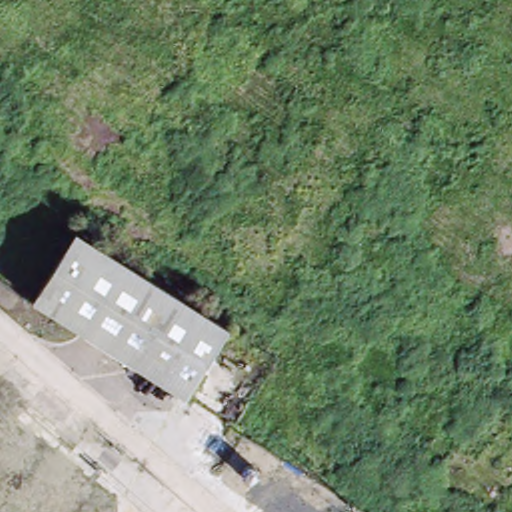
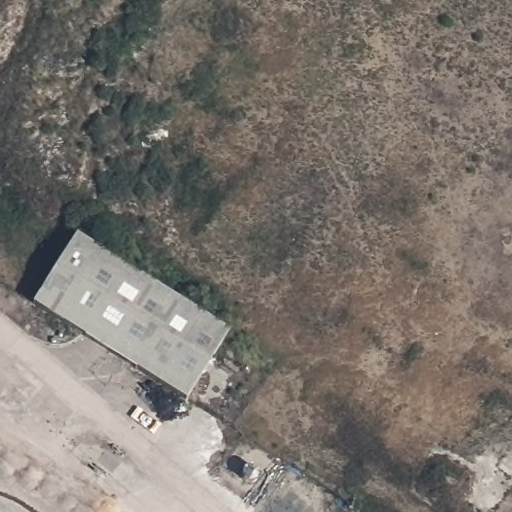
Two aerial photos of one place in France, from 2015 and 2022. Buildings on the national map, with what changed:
unchanged [(32,304),(74,235),(174,298),(172,305),(192,317),(197,313),(225,331),(182,399),(32,304)]

